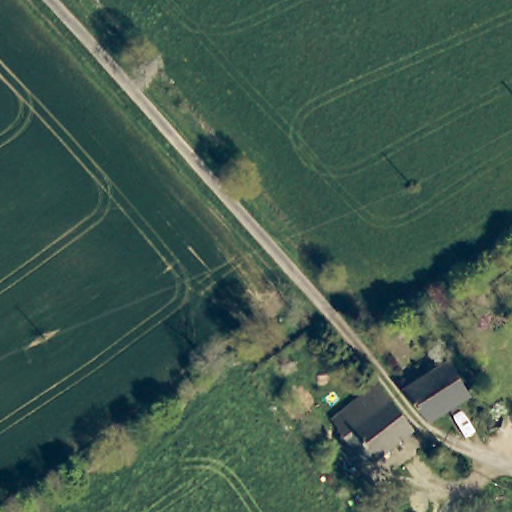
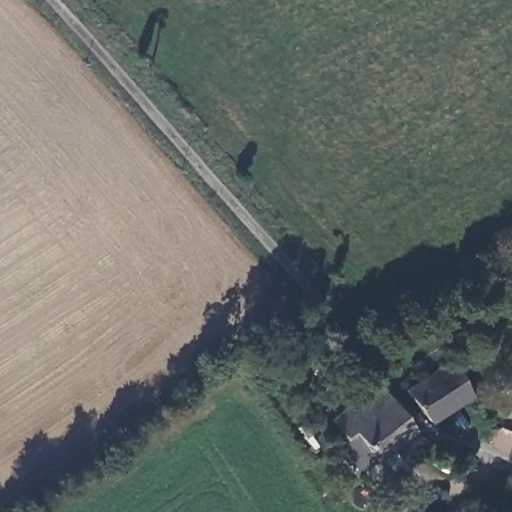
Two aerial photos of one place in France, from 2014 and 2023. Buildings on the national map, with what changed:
unchanged [(471,396),(443,413),(427,421),(407,386),(447,362),(471,396)]
unchanged [(343,437),(332,421),(371,390),(378,385),(413,430),(358,471),(337,442),(343,437)]

